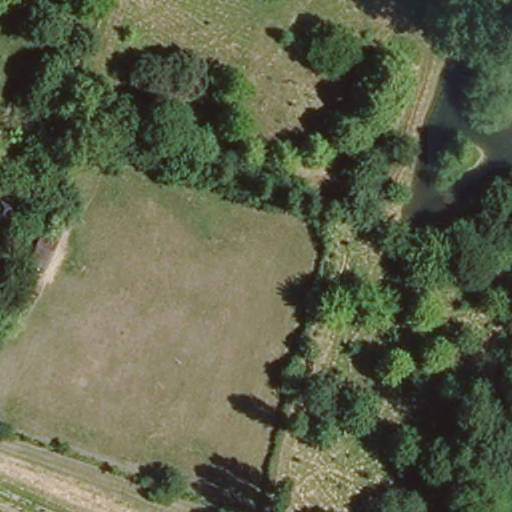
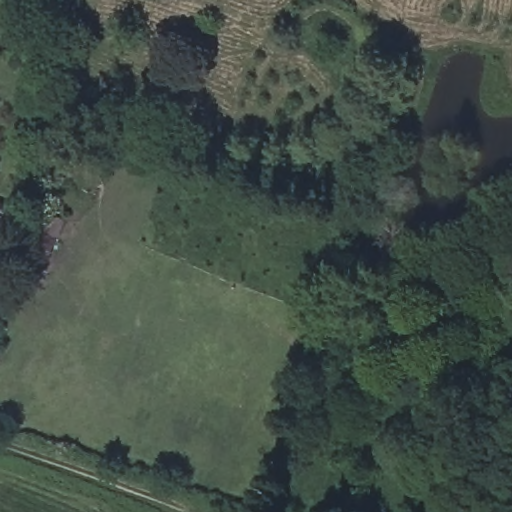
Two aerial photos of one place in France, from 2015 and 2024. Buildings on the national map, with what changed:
unchanged [(3,197),(17,203),(11,219),(0,215),(0,203),(3,197)]

